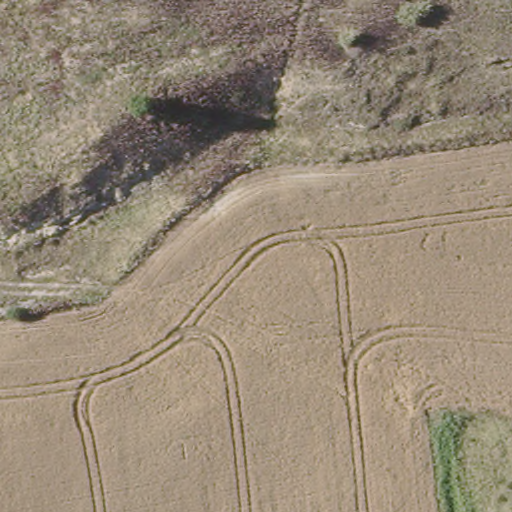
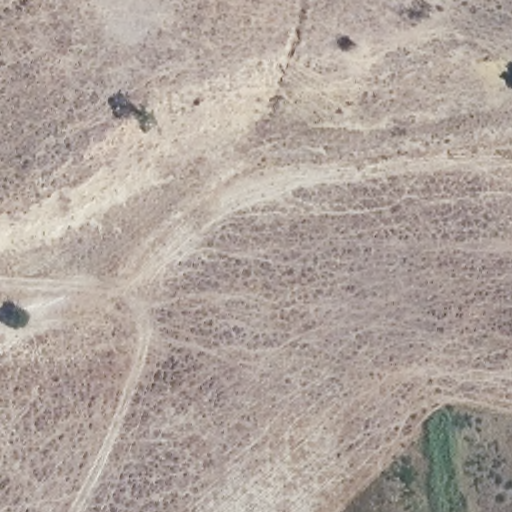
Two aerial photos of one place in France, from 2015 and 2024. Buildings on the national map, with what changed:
[]

